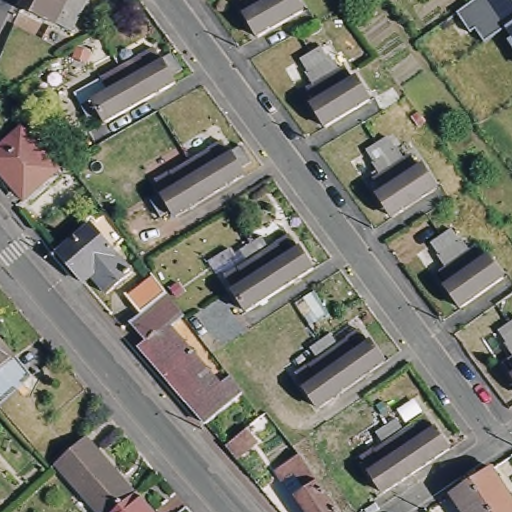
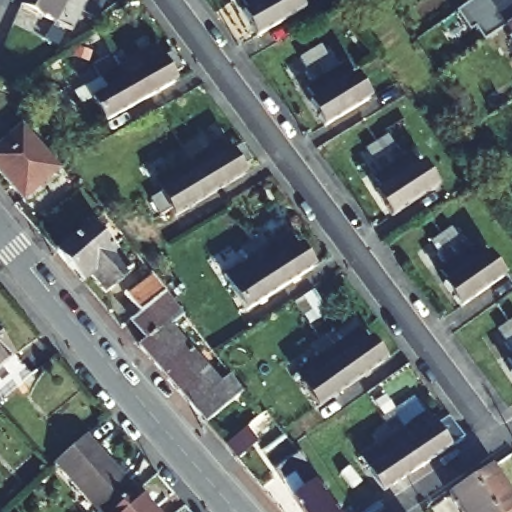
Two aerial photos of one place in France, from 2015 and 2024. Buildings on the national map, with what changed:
unchanged [(52,24),(17,6),(21,0),(52,0),(78,14),(70,31),(53,23),(52,24)]
unchanged [(52,0),(84,0),(78,14),(52,0)]
unchanged [(260,32),(246,7),(250,5),(248,0),(272,0),(283,20),(260,32)]
unchanged [(283,20),(272,0),(302,0),(306,6),(283,20)]
unchanged [(478,44),(453,10),(467,0),(512,0),(512,48),(499,30),(478,44)]
unchanged [(123,69),(142,58),(142,56),(158,48),(165,60),(176,53),(186,70),(175,76),(178,83),(143,103),(123,69)]
unchanged [(325,74),(336,66),(343,77),(331,84),(320,91),(313,81),(325,74)]
unchanged [(143,103),(108,123),(104,115),(92,121),(76,94),(123,69),(143,103)]
unchanged [(332,85),(345,77),(352,90),(358,86),(365,98),(369,95),(384,119),(361,133),(332,85)]
unchanged [(332,85),(361,133),(339,146),(324,122),(329,120),(322,109),(327,105),(320,92),(332,85)]
unchanged [(0,168),(0,141),(20,124),(55,164),(22,194),(0,168)]
unchanged [(395,142),(401,152),(402,151),(411,164),(416,160),(423,171),(427,168),(445,192),(422,207),(384,149),(395,142)]
unchanged [(205,156),(220,146),(227,158),(239,151),(249,167),(237,174),(241,181),(207,202),(185,168),(205,156)]
unchanged [(422,207),(400,222),(384,198),(388,195),(381,184),(386,181),(378,168),(379,168),(372,158),(384,149),(422,207)]
unchanged [(172,223),(168,216),(157,223),(147,207),(160,199),(152,188),(168,179),(167,178),(185,168),(207,202),(172,223)]
unchanged [(56,249),(88,221),(129,267),(105,287),(90,270),(81,278),(56,249)]
unchanged [(451,227),(458,238),(460,237),(468,249),(473,245),(481,256),(485,253),(502,276),(480,291),(440,236),(451,227)]
unchanged [(460,307),(442,284),(446,281),(439,270),(444,266),(435,254),(436,254),(430,244),(440,236),(480,291),(460,307)]
unchanged [(251,250),(263,242),(270,254),(278,249),(277,248),(291,239),(300,251),(315,273),(281,295),(251,250)]
unchanged [(251,250),(281,295),(248,316),(233,293),(234,293),(225,281),(240,271),(241,272),(250,266),(241,254),(250,248),(251,250)]
unchanged [(174,321),(224,379),(232,372),(246,389),(208,419),(141,342),(150,335),(135,316),(144,309),(130,291),(155,271),(170,289),(185,310),(174,321)]
unchanged [(510,342),(503,330),(512,324),(512,347),(509,343),(510,342)]
unchanged [(322,342),(332,335),(340,346),(348,341),(348,340),(362,330),(370,341),(370,340),(386,362),(354,385),(322,342)]
unchanged [(29,369),(0,393),(0,335),(29,369)]
unchanged [(321,409),(306,387),(306,386),(298,375),(312,365),(313,366),(321,360),(313,349),(322,342),(354,385),(321,409)]
unchanged [(512,358),(512,359),(511,359),(512,358)]
unchanged [(399,420),(405,430),(412,425),(412,424),(426,414),(434,426),(435,426),(450,448),(417,471),(396,440),(387,428),(399,420)]
unchanged [(396,440),(417,471),(385,493),(370,470),(362,458),(376,448),(377,449),(384,445),(377,435),(387,428),(396,440)]
unchanged [(234,459),(222,447),(243,429),(254,442),(234,459)]
unchanged [(111,512),(94,512),(50,463),(81,436),(132,493),(111,512)]
unchanged [(273,465),(295,450),(338,512),(305,512),(273,465)]
unchanged [(512,502),(512,512),(488,512),(468,483),(489,469),(512,502)]
unchanged [(488,512),(457,512),(447,497),(468,483),(488,512)]
unchanged [(150,512),(111,512),(132,493),(150,512)]

